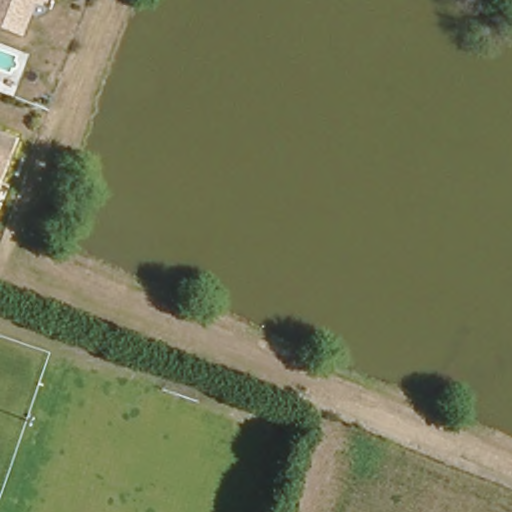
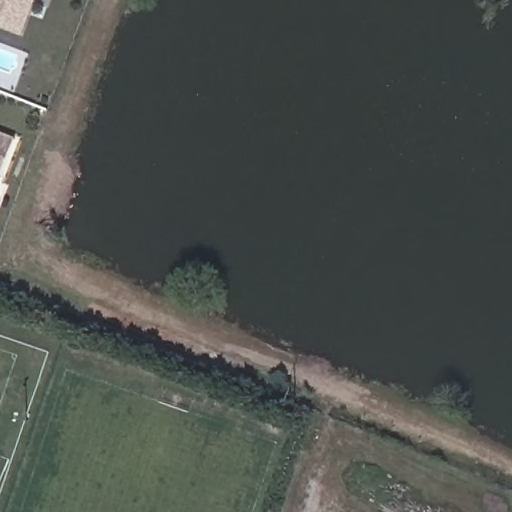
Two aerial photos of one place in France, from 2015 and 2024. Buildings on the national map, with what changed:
unchanged [(0,24),(0,0),(31,0),(19,31),(0,24)]
unchanged [(2,174),(0,173),(0,130),(16,136),(2,174)]

